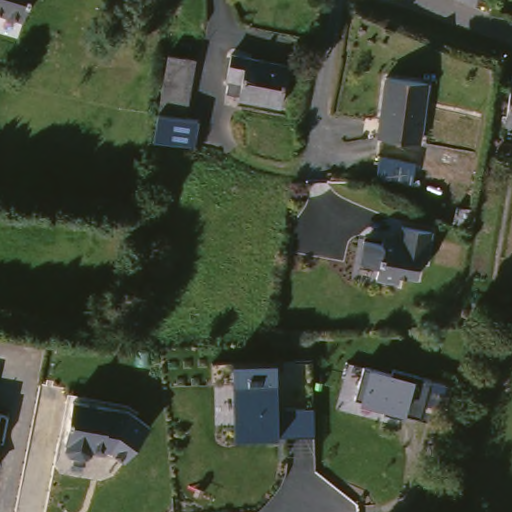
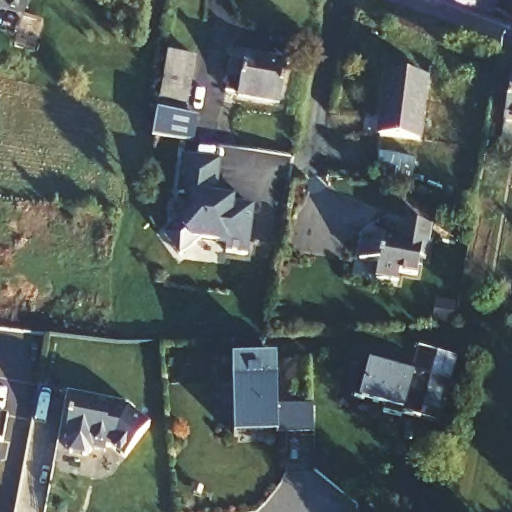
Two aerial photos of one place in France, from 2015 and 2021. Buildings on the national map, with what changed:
unchanged [(0,3),(0,0),(36,0),(33,11),(0,3)]
unchanged [(482,3),(477,0),(504,0),(503,5),(482,3)]
unchanged [(293,55),(284,98),(242,90),(245,76),(233,73),(239,46),(293,55)]
unchanged [(172,60),(173,55),(203,62),(185,143),(156,139),(159,123),(172,60)]
unchanged [(432,74),(419,136),(377,129),(388,66),(432,74)]
unchanged [(512,108),(512,115),(511,115),(512,108)]
new [(221,165),(218,200),(234,203),(233,209),(254,210),(249,259),(226,255),(228,247),(200,244),(180,258),(164,236),(182,224),(185,197),(177,197),(183,159),(221,165)]
unchanged [(436,224),(436,255),(431,255),(431,270),(410,270),(410,276),(385,275),(385,264),(368,264),(368,239),(386,239),(387,234),(405,234),(405,225),(436,224)]
unchanged [(275,361),(276,409),(312,408),(313,436),(277,437),(234,438),(232,363),(275,361)]
unchanged [(367,366),(391,371),(392,366),(429,374),(421,416),(407,411),(406,419),(363,404),(361,366),(367,366)]
unchanged [(113,407),(147,423),(126,460),(108,449),(90,447),(85,454),(76,455),(69,452),(63,443),(64,435),(74,402),(113,407)]
unchanged [(2,411),(0,430),(0,411),(2,411)]

